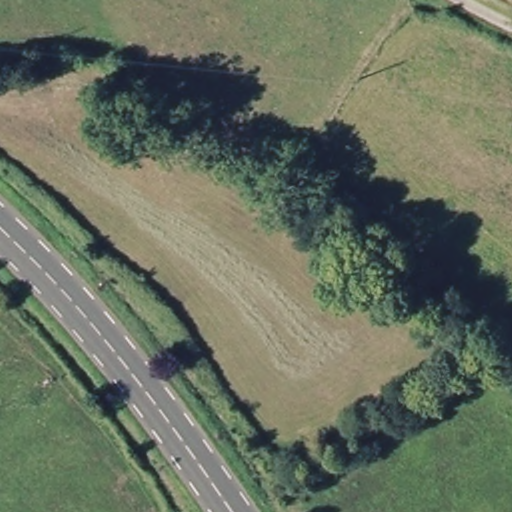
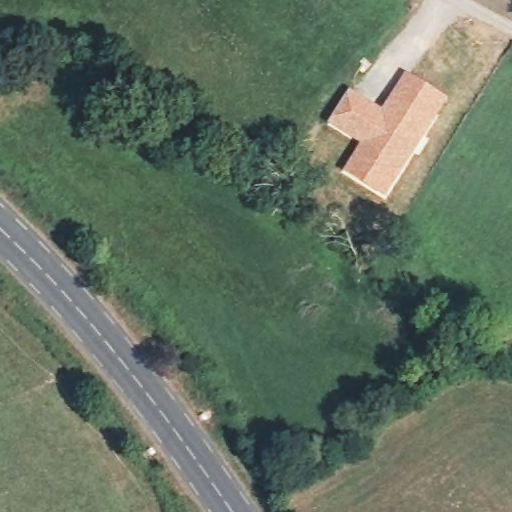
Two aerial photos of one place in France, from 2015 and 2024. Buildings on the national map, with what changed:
new [(349,88),(381,108),(404,71),(448,98),(385,199),(342,172),(359,144),(327,123),(349,88)]

